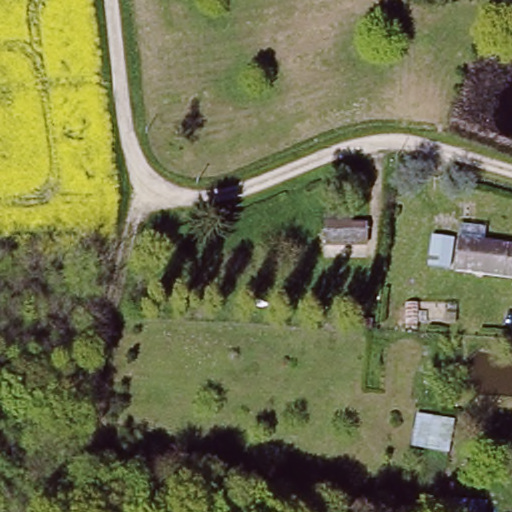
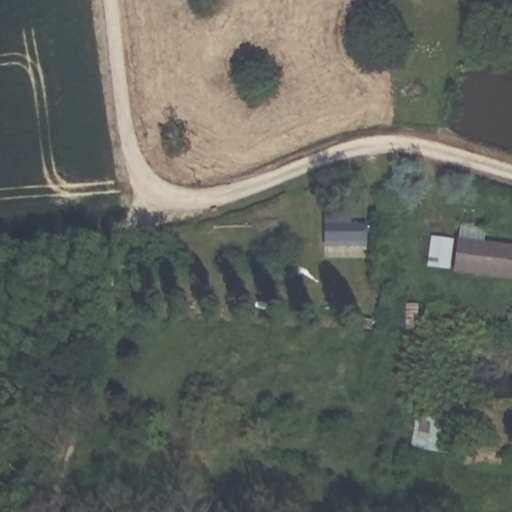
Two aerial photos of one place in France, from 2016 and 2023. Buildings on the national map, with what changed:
unchanged [(457,237),(458,220),(484,222),(482,239),(512,242),(512,273),(454,268),(457,237)]
unchanged [(363,221),(363,240),(324,242),(324,222),(363,221)]
unchanged [(450,234),(448,263),(426,260),(429,233),(450,234)]
unchanged [(437,416),(455,421),(449,450),(411,443),(416,411),(437,416)]

